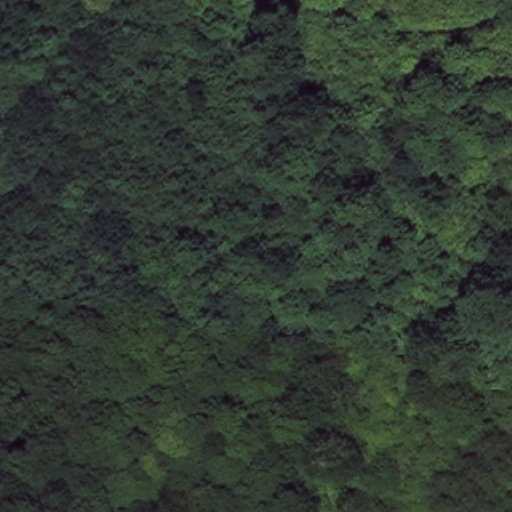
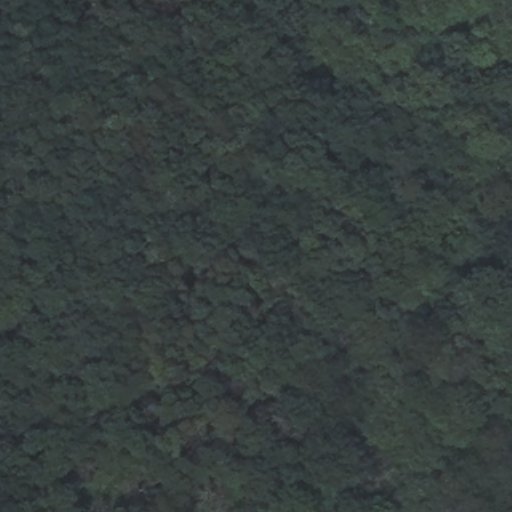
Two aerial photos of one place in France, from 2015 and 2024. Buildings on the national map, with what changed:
[]

